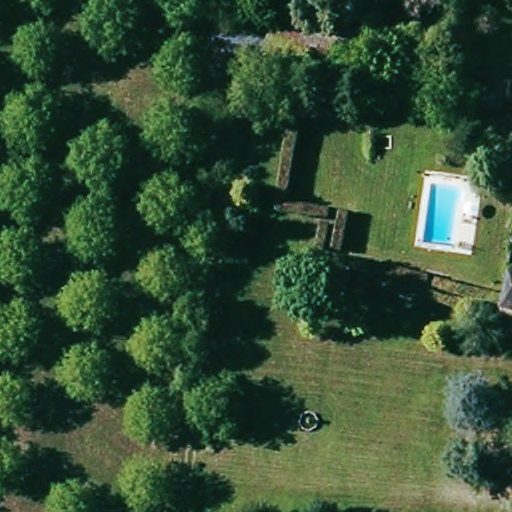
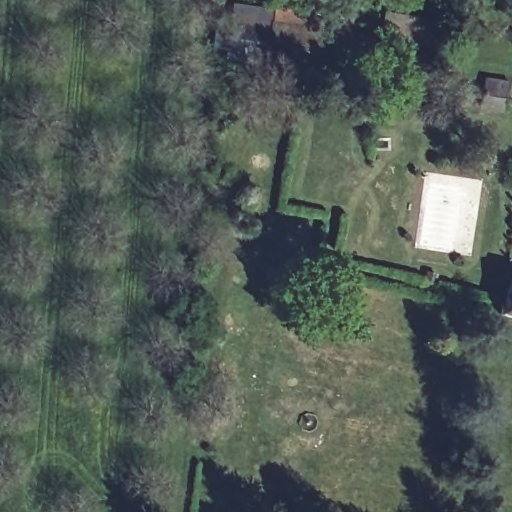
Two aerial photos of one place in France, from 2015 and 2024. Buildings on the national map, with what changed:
unchanged [(366,43),(360,82),(262,65),(268,25),(366,43)]
unchanged [(505,82),(502,100),(479,96),(481,79),(505,82)]
unchanged [(512,313),(507,312),(512,292),(512,313)]

